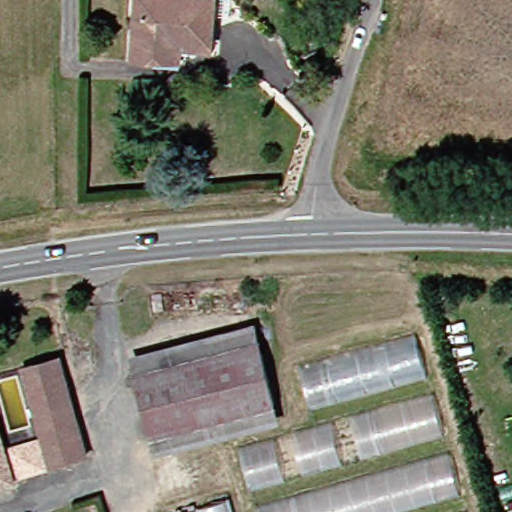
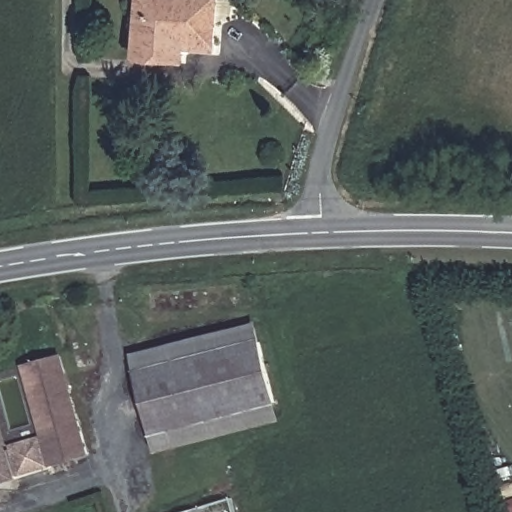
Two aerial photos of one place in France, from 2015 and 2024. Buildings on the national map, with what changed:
unchanged [(182,47),(181,57),(134,56),(136,0),(215,0),(213,40),(212,49),(182,47)]
unchanged [(149,432),(133,372),(249,342),(265,401),(149,432)]
demolished [(307,421),(297,371),(415,342),(458,512),(256,512),(236,447),(307,421)]
unchanged [(50,461),(31,395),(28,382),(56,373),(61,387),(79,453),(50,461)]
unchanged [(44,463),(16,471),(10,444),(36,437),(44,463)]
unchanged [(0,476),(0,459),(4,475),(0,476)]
unchanged [(99,502),(102,512),(71,512),(70,510),(99,502)]
unchanged [(224,512),(181,512),(222,502),(224,512)]

